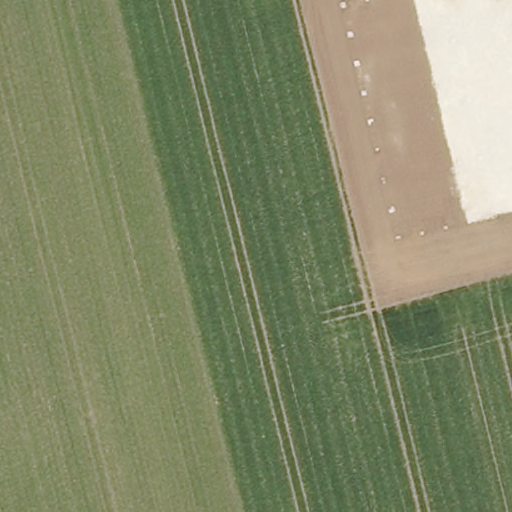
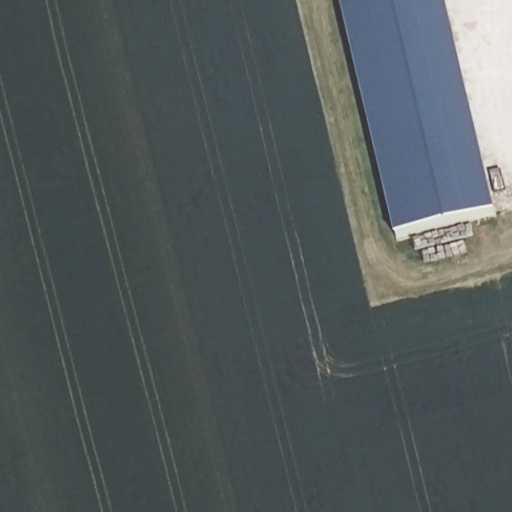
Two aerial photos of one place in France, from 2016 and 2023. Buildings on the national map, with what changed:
new [(445,0),(495,216),(396,238),(340,5),(363,0),(445,0)]

